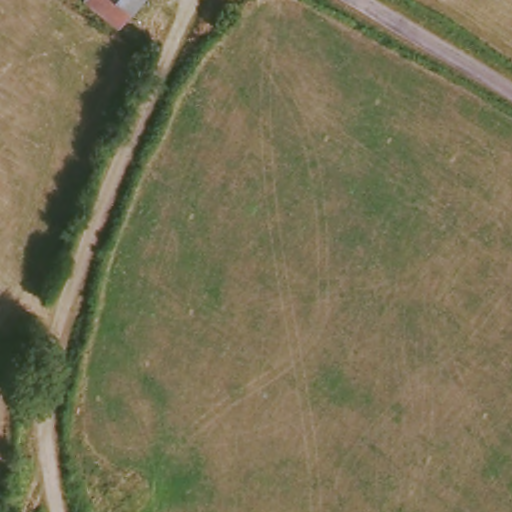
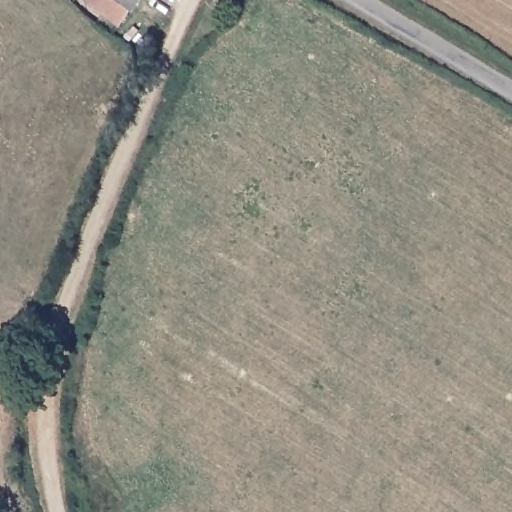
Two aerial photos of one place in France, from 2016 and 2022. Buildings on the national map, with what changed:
unchanged [(118,26),(86,0),(138,0),(118,26)]

